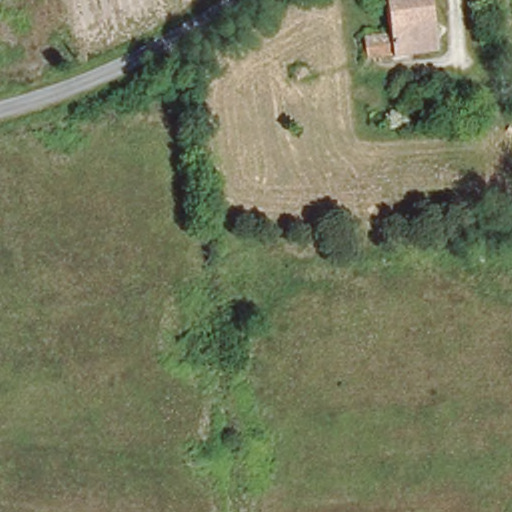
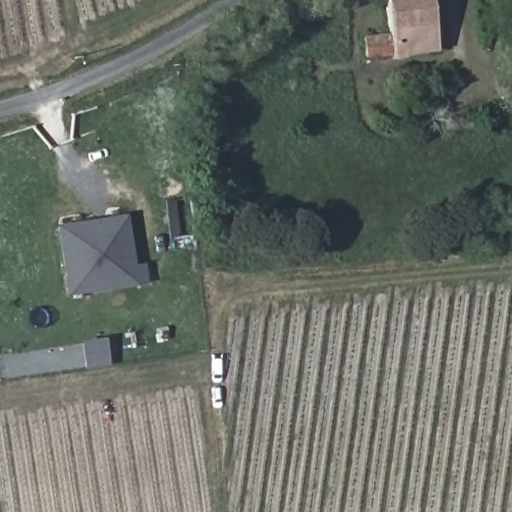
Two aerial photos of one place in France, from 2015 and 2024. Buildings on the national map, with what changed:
unchanged [(387,26),(384,0),(430,0),(432,20),(387,26)]
unchanged [(503,45),(476,49),(471,15),(498,10),(503,45)]
unchanged [(391,53),(384,54),(366,56),(363,37),(388,34),(387,26),(432,20),(436,49),(391,55),(391,53)]
new [(62,277),(55,228),(93,222),(100,220),(120,218),(128,269),(138,268),(140,282),(102,288),(64,293),(62,277)]

